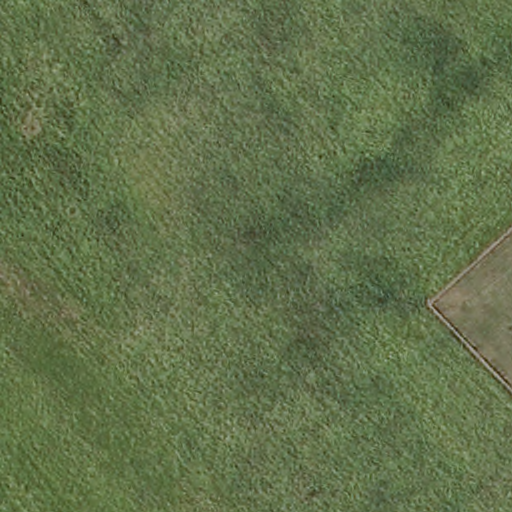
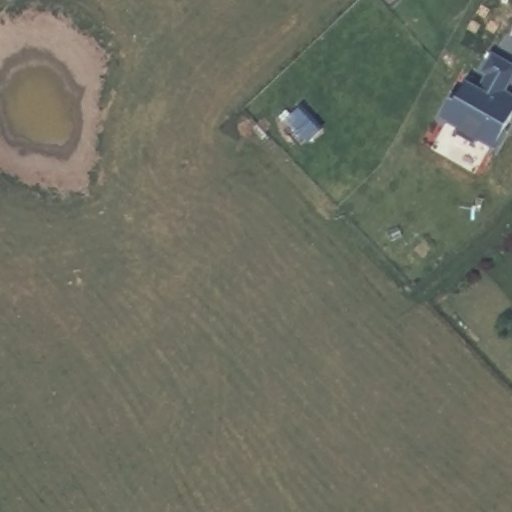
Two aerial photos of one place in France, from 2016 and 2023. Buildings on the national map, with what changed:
new [(503,91),(512,96),(512,119),(494,150),(442,120),(465,80),(480,89),(496,58),(512,65),(512,78),(503,91)]

